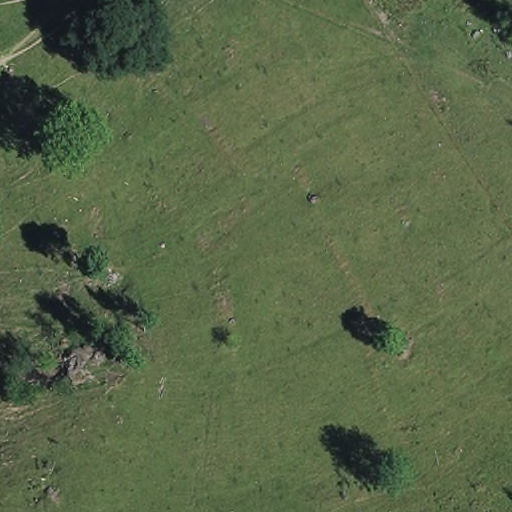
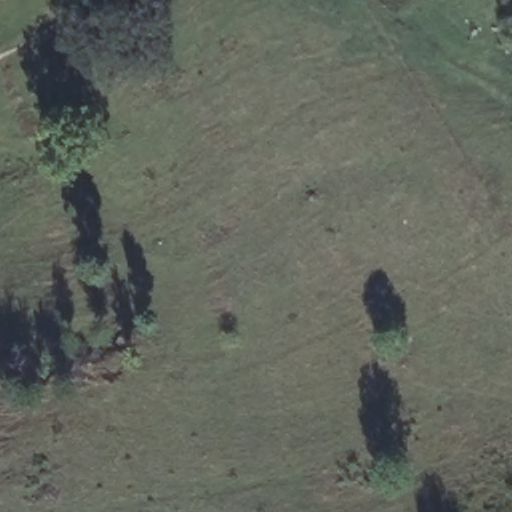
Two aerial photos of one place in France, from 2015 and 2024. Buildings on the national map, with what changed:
[]

